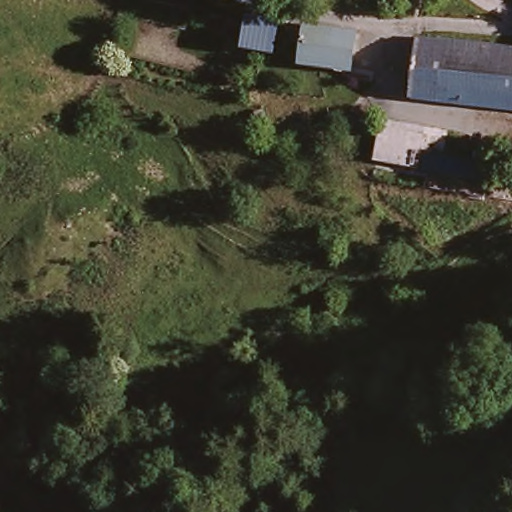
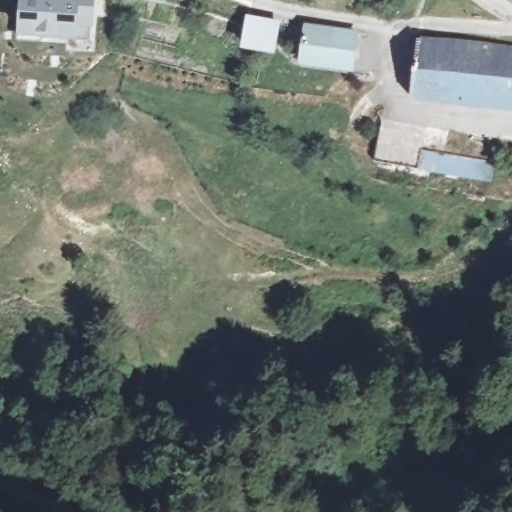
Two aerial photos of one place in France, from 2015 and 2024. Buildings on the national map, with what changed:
new [(19,40),(22,0),(96,0),(94,27),(90,27),(89,40),(42,36),(41,41),(19,40)]
unchanged [(276,22),(273,49),(243,44),(248,16),(276,22)]
unchanged [(364,43),(358,71),(299,58),(304,32),(364,43)]
unchanged [(512,109),(417,90),(427,34),(512,51),(512,109)]
unchanged [(394,119),(438,128),(433,167),(388,156),(394,119)]

